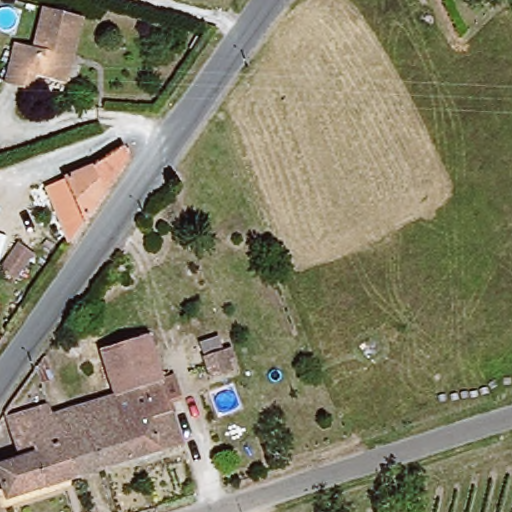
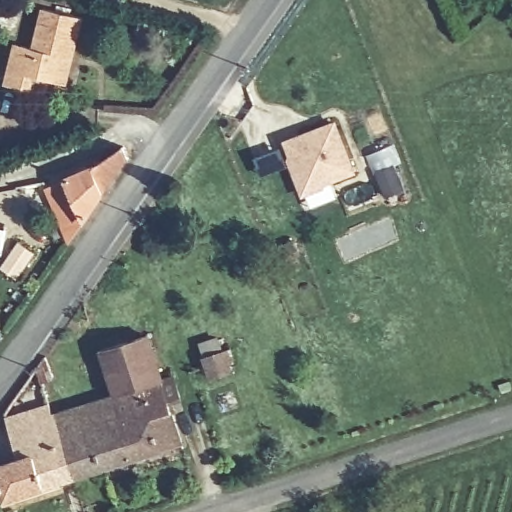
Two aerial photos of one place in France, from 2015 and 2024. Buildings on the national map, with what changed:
unchanged [(5,84),(14,44),(31,47),(40,6),(81,15),(66,84),(32,77),(30,89),(5,84)]
new [(309,208),(303,192),(285,142),(334,123),(352,173),(329,182),(335,197),(309,208)]
unchanged [(79,212),(66,180),(92,172),(121,149),(140,143),(101,197),(85,219),(79,212)]
unchanged [(62,219),(57,222),(47,223),(39,216),(37,206),(39,200),(42,197),(51,194),(59,195),(63,198),(67,209),(66,215),(62,219)]
new [(21,245),(36,255),(16,280),(2,269),(21,245)]
unchanged [(142,307),(162,378),(173,377),(177,396),(168,400),(181,451),(106,473),(96,441),(122,433),(113,402),(90,322),(142,307)]
unchanged [(231,355),(233,369),(216,374),(209,351),(235,343),(237,353),(231,355)]
unchanged [(39,366),(50,351),(55,376),(44,379),(39,366)]
unchanged [(106,473),(75,483),(47,397),(62,394),(68,414),(113,402),(122,433),(96,441),(106,473)]
unchanged [(9,505),(0,476),(0,469),(17,464),(6,418),(12,409),(47,397),(75,483),(9,505)]

